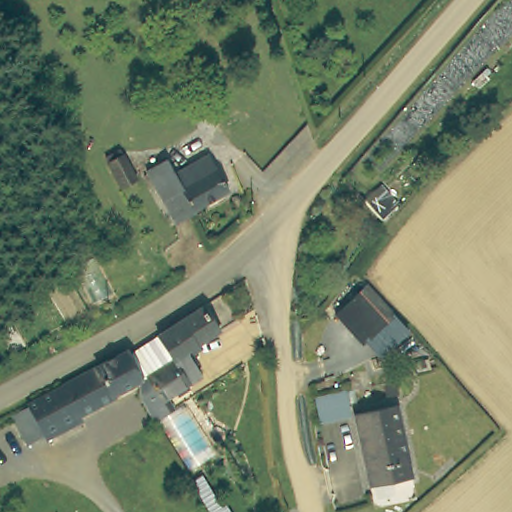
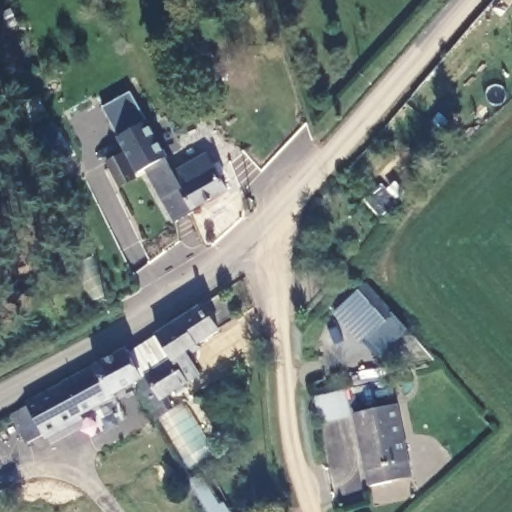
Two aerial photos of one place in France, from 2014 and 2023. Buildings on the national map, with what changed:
new [(119,182),(106,158),(120,150),(102,107),(130,94),(164,156),(145,166),(135,175),(134,175),(119,182)]
demolished [(134,175),(119,182),(106,158),(120,150),(121,150),(127,160),(135,175),(134,175)]
unchanged [(164,156),(172,172),(207,154),(225,191),(191,208),(192,211),(172,221),(145,166),(164,156)]
unchanged [(361,192),(376,177),(395,192),(381,209),(361,192)]
unchanged [(397,316),(407,327),(380,351),(367,336),(362,341),(335,310),(367,282),(368,282),(394,312),(396,315),(397,316)]
unchanged [(219,328),(185,348),(199,372),(164,393),(170,405),(155,415),(148,418),(139,402),(134,393),(142,375),(163,362),(168,360),(152,332),(159,329),(161,327),(180,317),(200,303),(210,298),(217,295),(232,320),(219,328)]
unchanged [(152,332),(168,360),(163,362),(142,375),(135,377),(122,352),(152,332)]
unchanged [(122,352),(135,377),(36,435),(18,405),(120,350),(122,352)]
unchanged [(341,387),(347,418),(323,423),(316,392),(341,387)]
unchanged [(182,398),(187,406),(212,450),(184,466),(159,421),(155,415),(170,405),(182,398)]
unchanged [(393,403),(408,477),(368,485),(353,412),(393,403)]
new [(207,512),(189,482),(206,472),(231,512),(207,512)]

